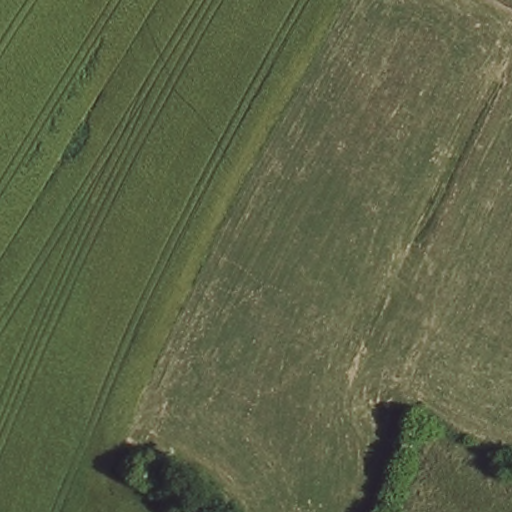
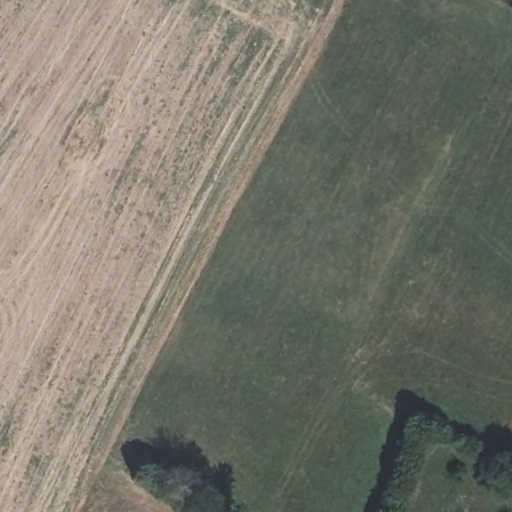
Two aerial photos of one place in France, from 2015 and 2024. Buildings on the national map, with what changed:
[]

